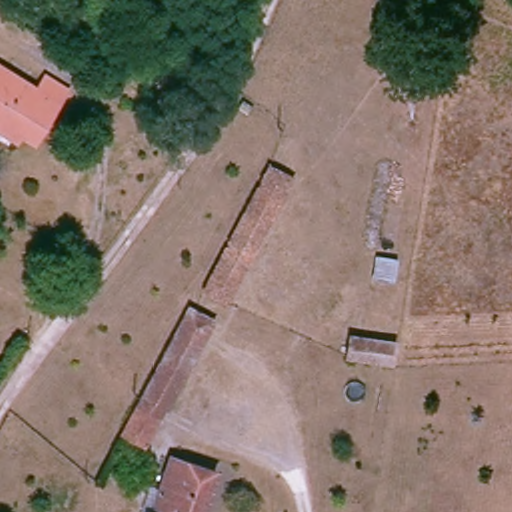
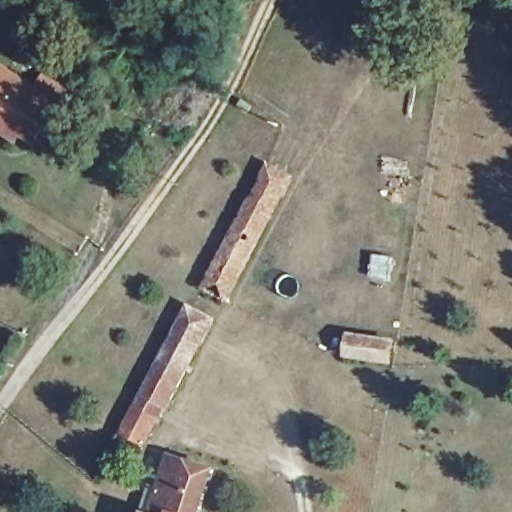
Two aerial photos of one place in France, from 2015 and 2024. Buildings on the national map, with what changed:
unchanged [(0,69),(56,104),(34,141),(20,133),(14,143),(0,134),(0,69)]
unchanged [(246,105),(240,113),(231,108),(237,99),(246,105)]
unchanged [(288,175),(229,302),(207,290),(265,165),(288,175)]
unchanged [(143,450),(120,438),(188,312),(212,324),(143,450)]
unchanged [(354,355),(357,332),(396,338),(392,362),(354,355)]
unchanged [(213,471),(198,512),(154,512),(174,455),(213,471)]
unchanged [(154,512),(149,512),(149,511),(154,512)]

